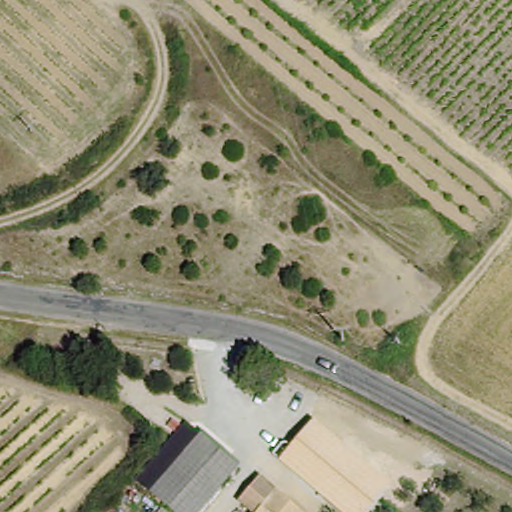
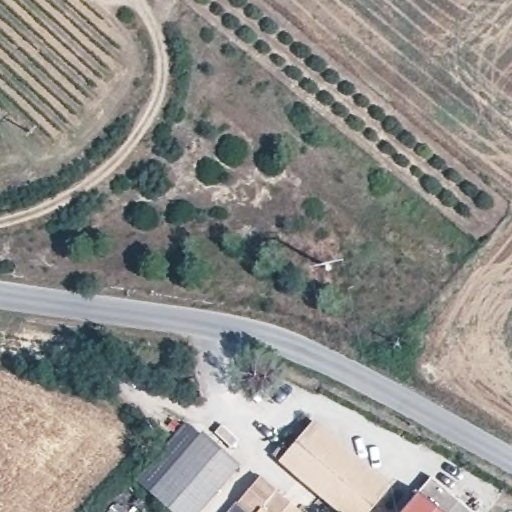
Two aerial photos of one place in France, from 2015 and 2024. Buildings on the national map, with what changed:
unchanged [(369,512),(339,512),(279,461),(314,419),(392,485),(369,512)]
unchanged [(199,512),(173,512),(147,491),(203,429),(242,463),(199,512)]
unchanged [(258,477),(274,492),(298,512),(252,512),(235,501),(258,477)]
new [(433,478),(472,512),(403,512),(419,493),(433,478)]

